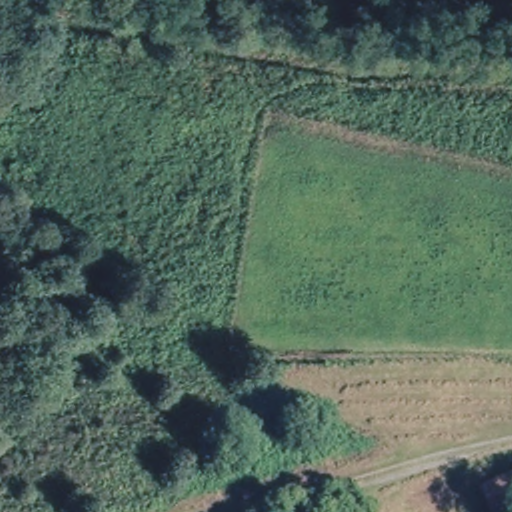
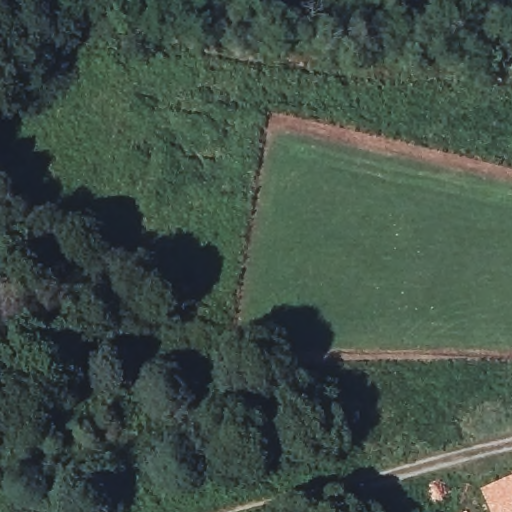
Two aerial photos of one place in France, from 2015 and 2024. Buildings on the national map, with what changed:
new [(512,475),(512,512),(491,512),(481,489),(512,475)]
demolished [(491,494),(512,485),(512,512),(497,512),(491,494)]

